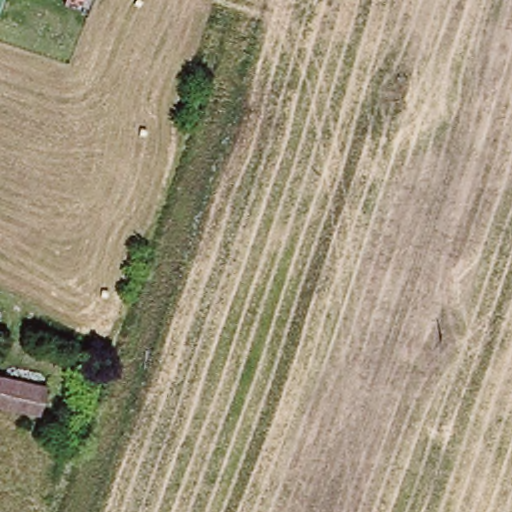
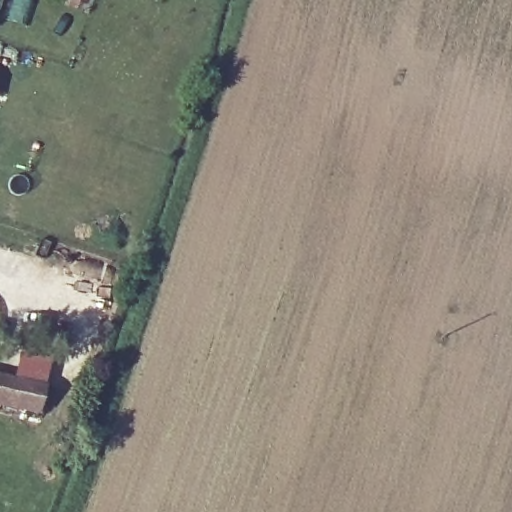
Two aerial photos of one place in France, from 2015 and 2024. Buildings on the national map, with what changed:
unchanged [(0,380),(41,390),(35,415),(0,406),(0,380)]

